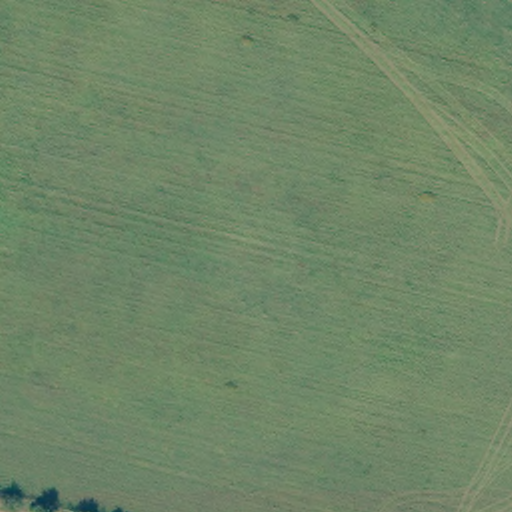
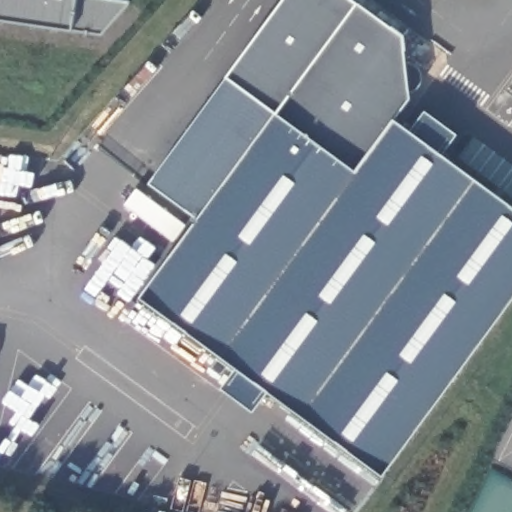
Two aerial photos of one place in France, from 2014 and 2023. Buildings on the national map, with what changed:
new [(129,2),(101,34),(72,30),(0,20),(0,0),(113,0),(129,2)]
new [(149,183),(227,76),(282,0),(353,0),(357,3),(402,36),(405,63),(413,63),(418,68),(421,74),(421,81),(417,86),(412,90),(408,99),(394,119),(409,131),(425,110),(457,134),(442,155),(512,206),(512,299),(382,476),(269,392),(253,412),(222,388),(236,368),(140,297),(197,219),(149,183)]

